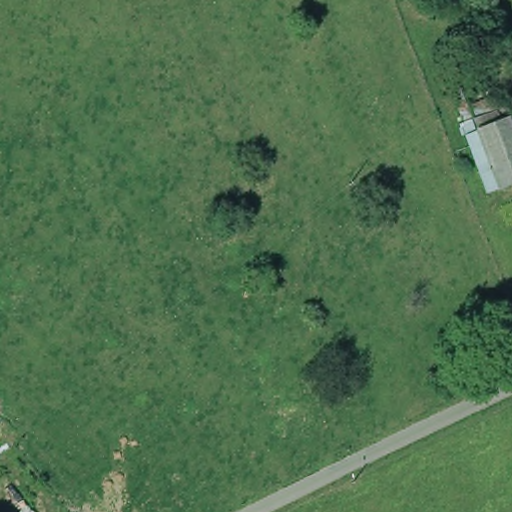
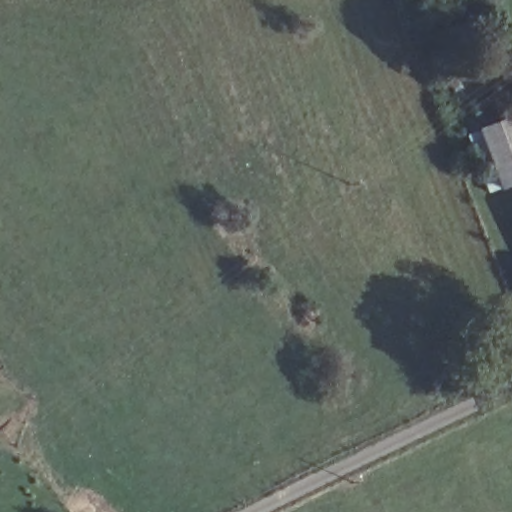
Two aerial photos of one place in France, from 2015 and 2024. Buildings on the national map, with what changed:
unchanged [(512,129),(512,172),(502,176),(486,136),(511,126),(512,129)]

